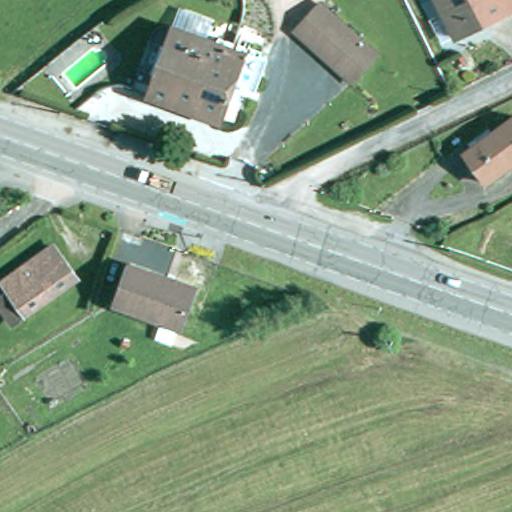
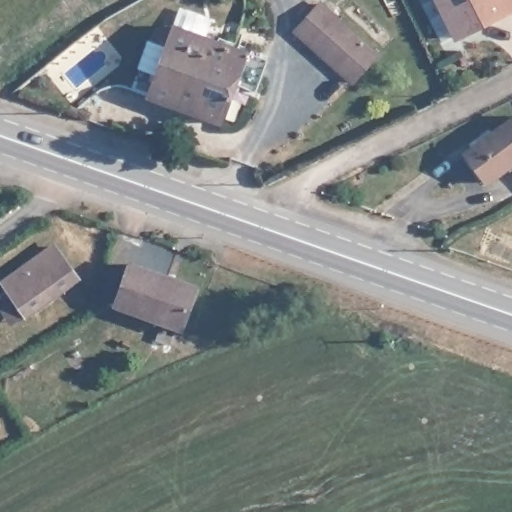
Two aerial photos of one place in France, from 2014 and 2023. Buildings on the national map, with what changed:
unchanged [(504,13),(454,38),(435,0),(512,0),(512,2),(501,8),(504,13)]
unchanged [(334,70),(321,59),(309,48),(295,35),(322,8),(336,22),(346,32),(358,44),(373,60),(348,83),(334,70)]
unchanged [(142,92),(170,24),(215,42),(184,110),(142,92)]
unchanged [(215,42),(269,64),(254,100),(231,92),(218,125),(184,110),(215,42)]
unchanged [(464,152),(512,115),(512,156),(485,179),(464,152)]
unchanged [(0,304),(0,288),(12,280),(7,272),(25,260),(60,237),(82,270),(30,306),(10,319),(0,304)]
unchanged [(195,287),(180,327),(114,303),(129,263),(195,287)]

